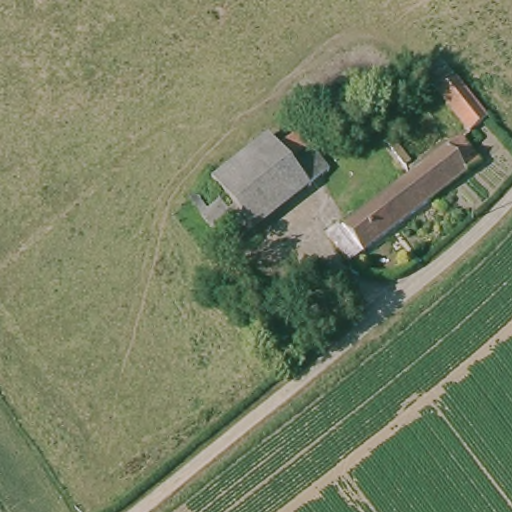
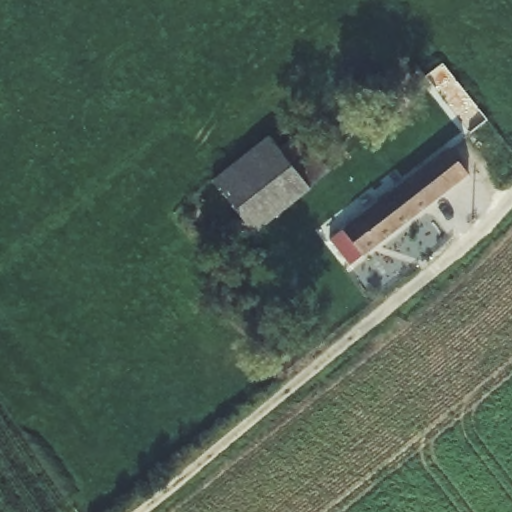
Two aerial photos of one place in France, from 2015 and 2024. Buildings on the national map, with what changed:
unchanged [(470,141),(437,99),(423,80),(441,66),(455,85),(487,127),(470,141)]
unchanged [(375,116),(396,141),(388,149),(367,122),(375,116)]
unchanged [(298,136),(328,176),(308,192),(277,152),(298,136)]
unchanged [(461,139),(478,162),(349,260),(331,236),(461,139)]
unchanged [(228,251),(195,209),(218,191),(215,187),(213,185),(270,142),(277,152),(308,192),(229,252),(228,251)]

